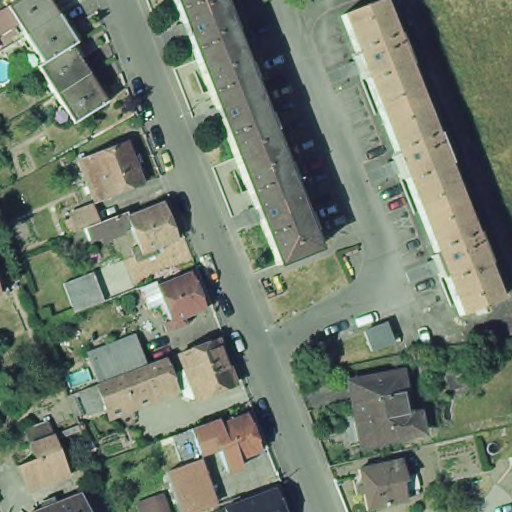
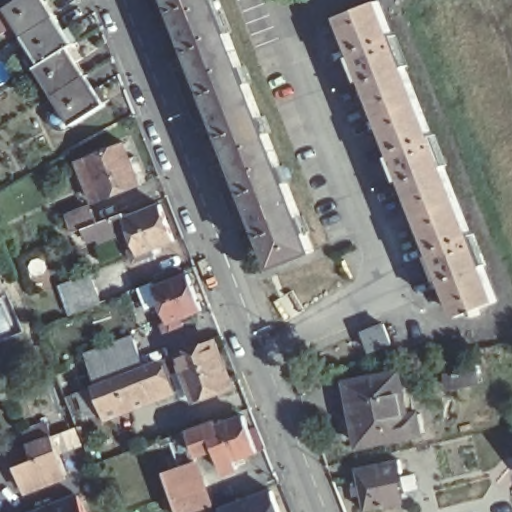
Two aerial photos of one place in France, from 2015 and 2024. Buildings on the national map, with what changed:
unchanged [(0,34),(0,16),(8,11),(25,0),(47,0),(58,19),(25,39),(19,29),(3,39),(0,34)]
unchanged [(168,0),(182,0),(169,5),(168,0)]
unchanged [(236,58),(198,74),(186,45),(183,45),(179,35),(181,33),(169,5),(182,0),(213,0),(236,58)]
unchanged [(350,59),(355,57),(339,17),(376,2),(416,102),(379,117),(363,77),(358,79),(350,59)]
unchanged [(25,39),(58,19),(75,47),(71,50),(43,68),(25,39)]
unchanged [(71,50),(88,79),(55,100),(38,72),(43,68),(71,50)]
unchanged [(275,157),(236,172),(221,132),(218,132),(213,118),(215,117),(198,74),(236,58),(275,157)]
unchanged [(88,79),(106,109),(73,130),(55,100),(88,79)]
unchanged [(389,159),(395,156),(379,117),(416,102),(457,202),(419,217),(404,179),(399,181),(389,159)]
unchanged [(89,197),(77,165),(88,161),(88,162),(125,147),(132,163),(136,161),(139,167),(134,169),(142,187),(104,203),(96,207),(92,196),(89,197)]
unchanged [(314,257),(276,273),(259,228),(256,230),(253,218),(254,217),(236,172),(275,157),(314,257)]
unchanged [(476,317),(474,312),(459,317),(443,277),(439,279),(430,257),(434,256),(419,217),(457,202),(497,302),(479,310),(481,315),(476,317)]
unchanged [(138,267),(132,252),(139,250),(130,228),(90,244),(85,232),(74,237),(71,232),(66,234),(63,226),(69,224),(68,222),(93,212),(99,227),(126,216),(128,221),(162,208),(176,243),(153,252),(156,257),(147,261),(141,263),(141,266),(138,267)]
unchanged [(64,282),(91,272),(102,301),(73,312),(64,282)]
unchanged [(176,320),(168,302),(153,307),(145,286),(159,280),(161,285),(193,272),(208,308),(186,317),(189,322),(178,327),(171,330),(168,322),(176,320)]
unchanged [(384,320),(392,338),(371,347),(364,329),(384,320)]
unchanged [(98,387),(94,376),(89,362),(137,342),(141,357),(146,368),(98,387)]
unchanged [(96,390),(123,379),(143,372),(159,365),(180,357),(215,343),(233,389),(198,403),(192,389),(185,392),(179,376),(166,382),(168,389),(151,396),(133,403),(104,414),(101,405),(96,407),(94,400),(99,397),(96,390)]
unchanged [(466,369),(477,367),(480,380),(468,382),(451,386),(449,372),(466,369)]
unchanged [(396,376),(404,418),(413,417),(417,436),(355,448),(344,387),(396,376)]
unchanged [(227,473),(224,467),(223,467),(217,450),(197,457),(188,432),(216,422),(218,429),(246,419),(259,455),(236,462),(238,470),(227,473)]
unchanged [(24,495),(15,471),(33,464),(26,449),(51,438),(57,454),(66,477),(24,495)]
unchanged [(191,453),(212,510),(205,512),(176,512),(159,465),(191,453)]
unchanged [(356,485),(364,483),(360,468),(401,459),(404,471),(396,472),(402,502),(369,509),(365,492),(358,494),(356,485)]
unchanged [(280,512),(230,512),(274,495),(280,512)]
unchanged [(44,512),(45,512),(41,503),(50,500),(54,507),(78,497),(85,512),(44,512)]

